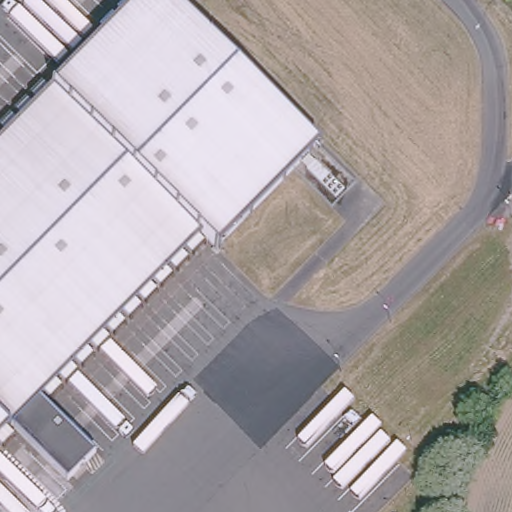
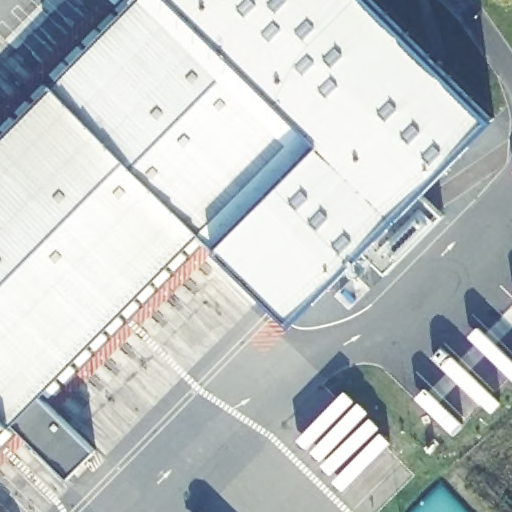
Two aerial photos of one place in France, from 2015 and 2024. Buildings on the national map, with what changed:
unchanged [(321,149),(217,254),(199,237),(42,396),(11,427),(0,439),(0,135),(134,0),(170,0),(321,149)]
new [(495,119),(424,192),(445,216),(387,271),(367,250),(294,323),(221,250),(321,149),(170,0),(373,0),(495,119)]
unchanged [(42,396),(97,450),(66,482),(11,427),(42,396)]

